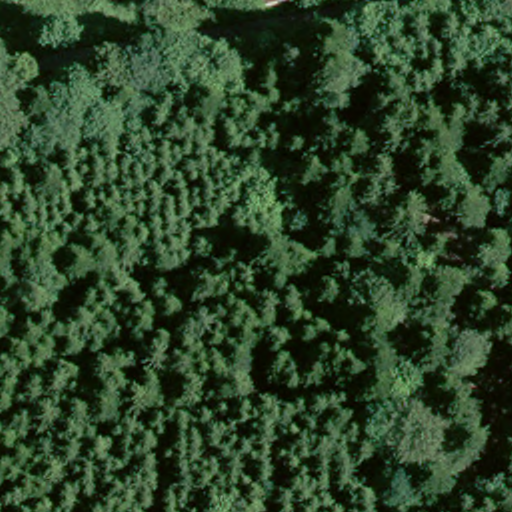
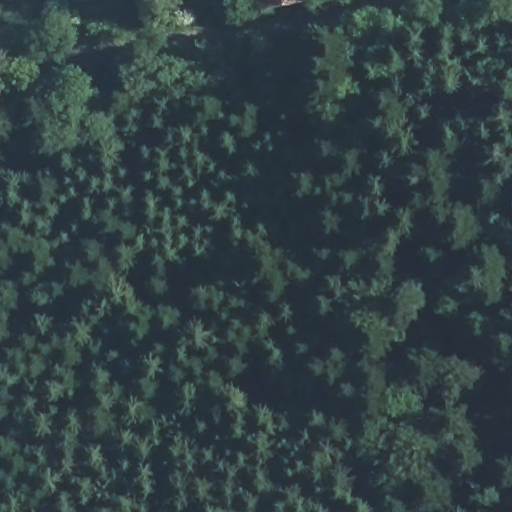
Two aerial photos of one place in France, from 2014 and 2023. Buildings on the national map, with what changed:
unchanged [(252,10),(251,0),(301,0),(252,10)]

